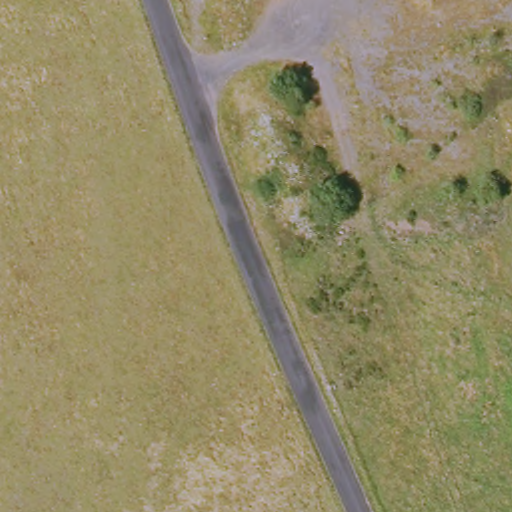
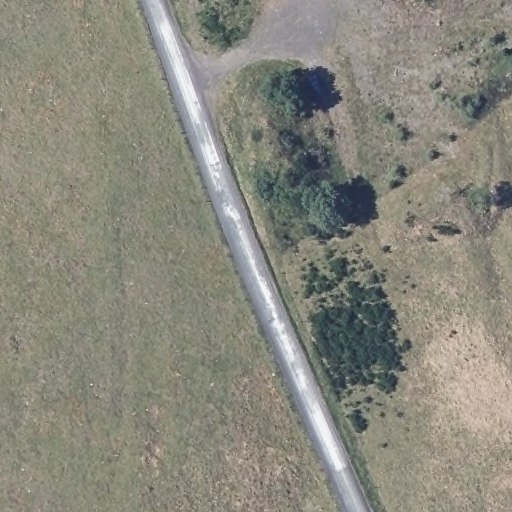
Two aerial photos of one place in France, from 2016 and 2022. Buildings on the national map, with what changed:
[]

